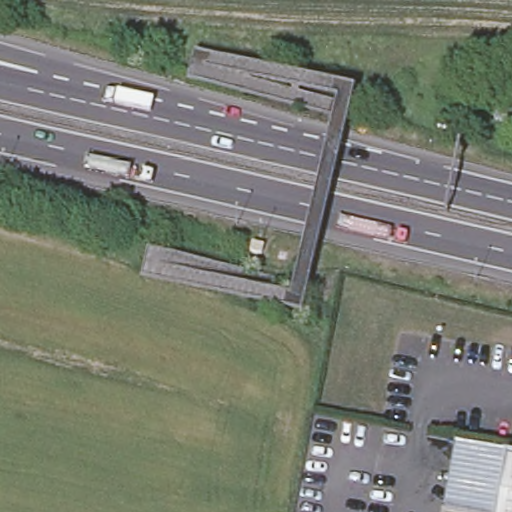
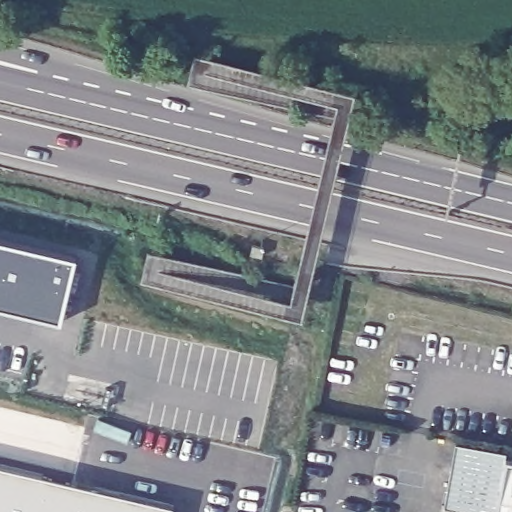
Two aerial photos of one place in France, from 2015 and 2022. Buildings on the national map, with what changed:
new [(83,258),(72,322),(0,305),(0,238),(83,258)]
unchanged [(444,507),(454,446),(507,457),(496,512),(471,512),(444,507)]
unchanged [(507,457),(512,458),(512,512),(496,512),(507,457)]
new [(175,508),(174,512),(0,512),(0,467),(175,508)]

